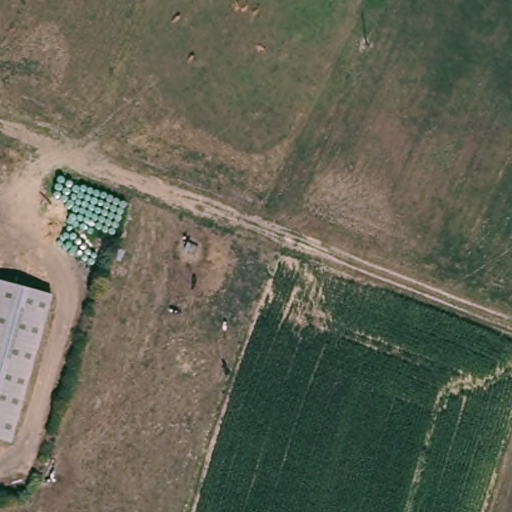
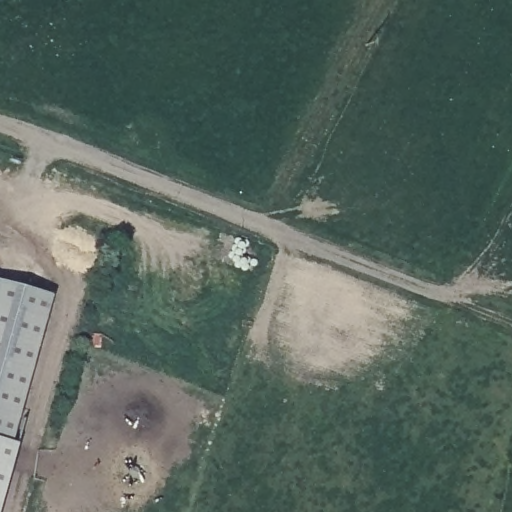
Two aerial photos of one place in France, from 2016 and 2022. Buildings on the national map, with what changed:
unchanged [(0,300),(0,278),(6,280),(0,300)]
unchanged [(9,441),(0,439),(0,300),(6,280),(50,294),(9,441)]
new [(16,443),(0,502),(0,439),(9,441),(16,443)]

